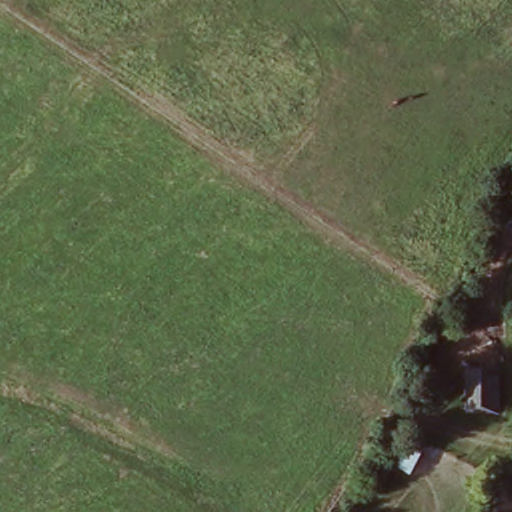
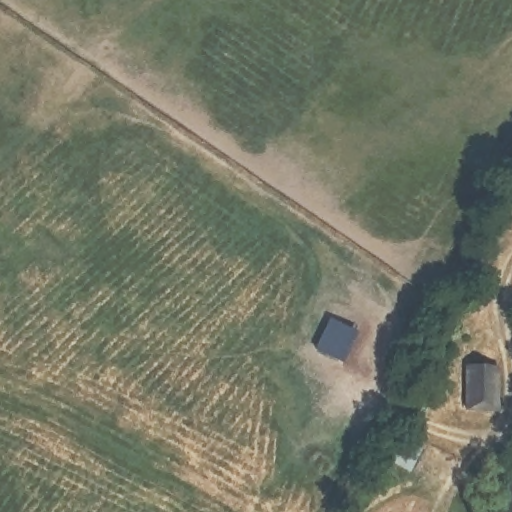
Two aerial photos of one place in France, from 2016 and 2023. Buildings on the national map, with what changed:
demolished [(511,302),(512,285),(512,303),(511,302)]
new [(356,328),(341,359),(316,349),(331,318),(356,328)]
unchanged [(466,363),(498,363),(498,407),(464,408),(466,363)]

